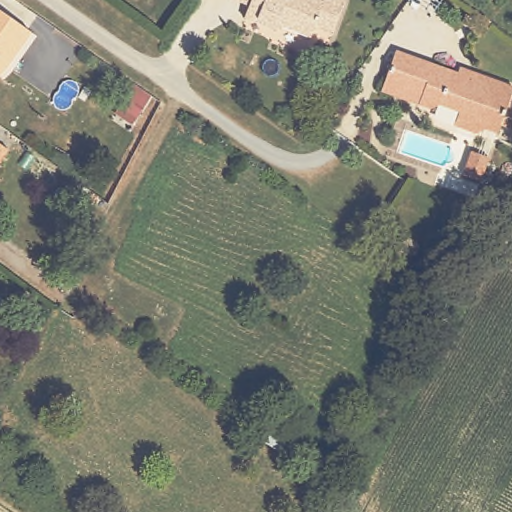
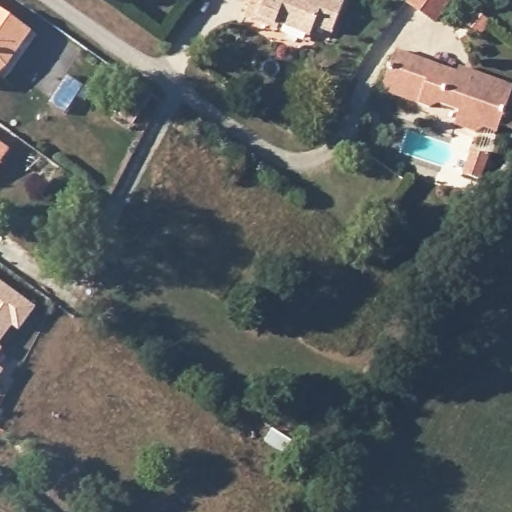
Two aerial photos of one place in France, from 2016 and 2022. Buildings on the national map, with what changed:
unchanged [(333,32),(315,25),(310,38),(278,26),(277,27),(270,24),(268,28),(244,18),(249,6),(234,0),(345,0),(333,32)]
unchanged [(0,69),(0,6),(32,29),(11,60),(0,69)]
unchanged [(482,36),(467,25),(476,13),(491,24),(482,36)]
unchanged [(451,124),(456,109),(437,102),(428,106),(381,88),(394,49),(468,76),(470,70),(512,85),(508,93),(512,94),(512,127),(499,123),(496,131),(482,126),(472,131),(451,124)]
unchanged [(0,162),(0,142),(10,149),(0,162)]
unchanged [(491,160),(482,184),(466,178),(474,155),(491,160)]
new [(19,333),(12,328),(0,345),(0,283),(36,310),(19,333)]
new [(0,354),(0,350),(2,352),(0,354)]
new [(0,378),(0,371),(4,374),(0,378)]
unchanged [(266,442),(272,431),(292,443),(286,454),(266,442)]

